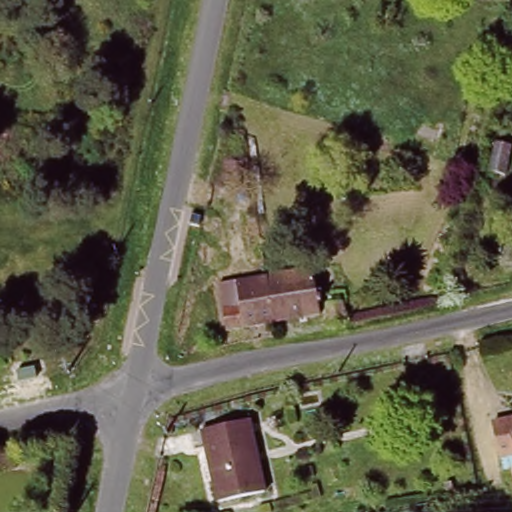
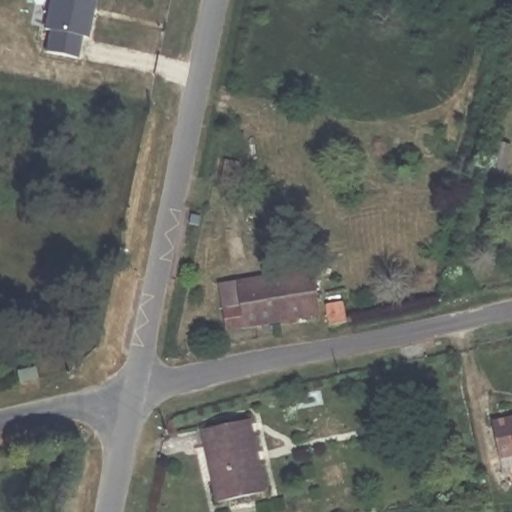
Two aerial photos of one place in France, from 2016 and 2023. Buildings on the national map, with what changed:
new [(52,26),(47,25),(52,0),(94,0),(87,33),(82,32),(77,53),(47,47),(52,26)]
unchanged [(310,265),(320,309),(273,321),(267,276),(310,265)]
unchanged [(267,276),(273,321),(230,332),(219,287),(267,276)]
unchanged [(337,304),(343,319),(344,322),(329,327),(327,322),(324,308),(337,304)]
new [(35,367),(37,377),(19,381),(17,371),(35,367)]
unchanged [(442,386),(449,413),(432,417),(426,389),(442,386)]
unchanged [(262,482),(215,494),(205,451),(203,438),(200,423),(247,412),(262,482)]
unchanged [(512,415),(512,462),(500,466),(488,421),(512,415)]
unchanged [(506,512),(512,510),(512,512),(506,512)]

